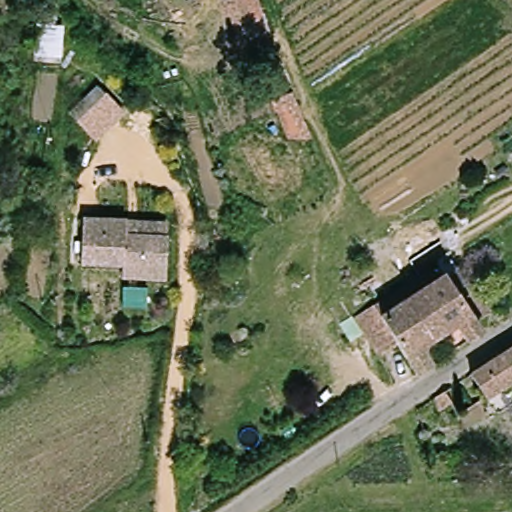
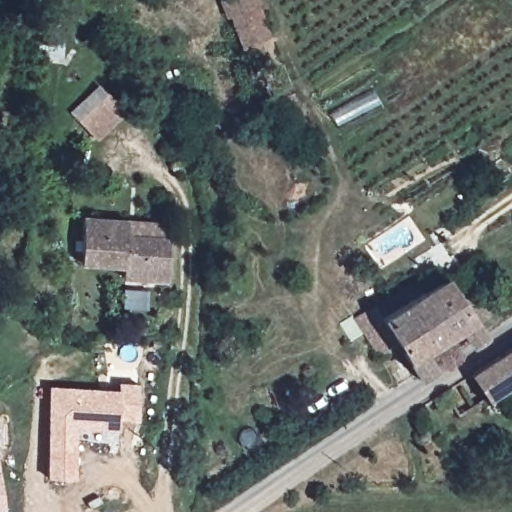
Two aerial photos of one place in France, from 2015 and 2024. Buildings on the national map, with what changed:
unchanged [(231,17),(225,19),(219,0),(259,0),(271,37),(241,50),(231,17)]
unchanged [(98,142),(70,112),(99,85),(128,113),(98,142)]
unchanged [(124,275),(124,268),(79,269),(78,222),(128,222),(170,222),(170,234),(172,275),(124,275)]
unchanged [(445,267),(452,263),(467,286),(488,318),(475,327),(482,338),(466,350),(456,337),(445,346),(408,292),(445,267)]
unchanged [(372,285),(393,271),(406,288),(382,305),(372,285)]
unchanged [(402,349),(388,358),(364,321),(408,292),(445,346),(428,357),(436,370),(420,380),(402,349)]
unchanged [(504,385),(489,395),(473,368),(512,343),(512,344),(512,380),(504,385)]
new [(117,418),(117,428),(74,427),(74,478),(45,478),(48,385),(118,388),(117,382),(138,382),(135,420),(117,418)]
unchanged [(448,385),(455,402),(445,408),(435,392),(448,385)]
new [(0,490),(3,510),(0,510),(0,490)]

